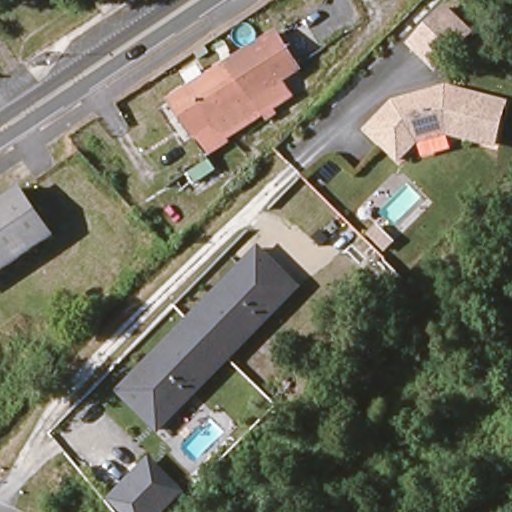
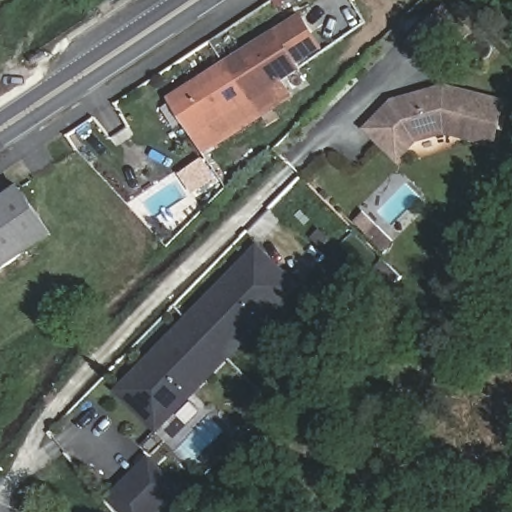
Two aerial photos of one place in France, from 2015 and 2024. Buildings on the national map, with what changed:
unchanged [(411,49),(439,17),(444,12),(471,35),(466,41),(437,72),(411,49)]
unchanged [(301,15),(322,52),(284,81),(294,100),(204,159),(165,97),(275,27),(301,15)]
unchanged [(393,101),(414,95),(415,100),(425,97),(424,92),(442,87),(481,97),(507,104),(494,145),(470,139),(443,131),(415,139),(397,158),(366,127),(393,101)]
unchanged [(55,236),(0,273),(0,208),(24,192),(55,236)]
unchanged [(160,438),(116,393),(257,247),(301,290),(160,438)]
unchanged [(187,492),(167,512),(122,512),(108,499),(151,456),(187,492)]

